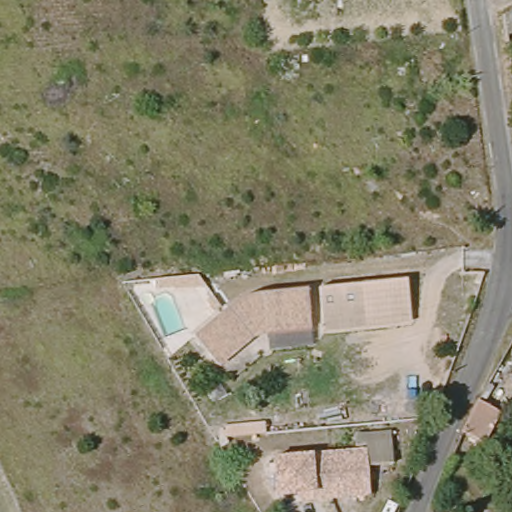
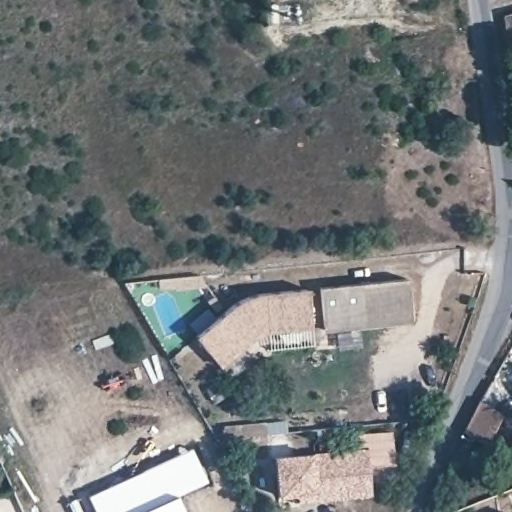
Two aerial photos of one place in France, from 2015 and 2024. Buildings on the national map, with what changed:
unchanged [(404,275),(408,316),(324,325),(319,283),(404,275)]
unchanged [(224,312),(241,301),(249,297),(304,292),(309,330),(278,331),(262,336),(251,341),(220,368),(193,340),(224,312)]
unchanged [(465,436),(468,430),(478,411),(498,415),(495,424),(487,442),(485,449),(465,436)]
unchanged [(218,435),(241,431),(243,450),(229,455),(218,435)]
unchanged [(268,459),(312,453),(355,451),(353,436),(387,432),(390,463),(366,467),(369,495),(313,499),(274,502),(268,459)]
new [(122,481),(192,448),(207,480),(177,495),(184,512),(96,512),(87,495),(122,481)]

